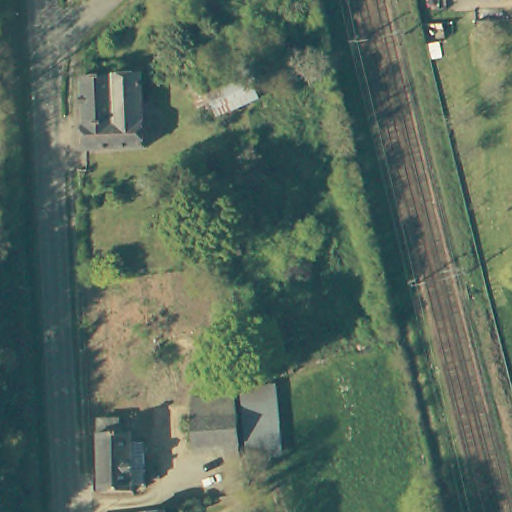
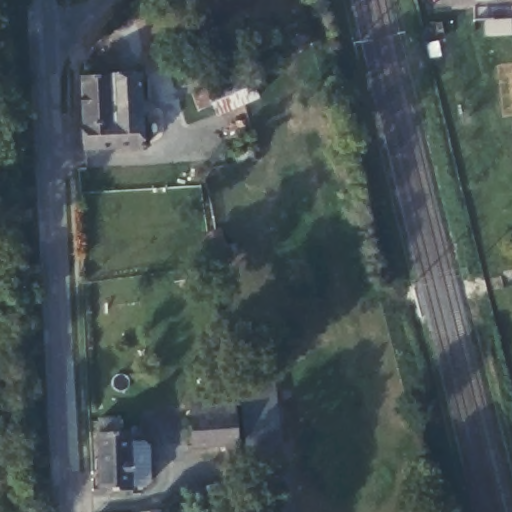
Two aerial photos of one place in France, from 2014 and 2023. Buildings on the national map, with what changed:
unchanged [(169,73),(163,59),(179,53),(185,67),(169,73)]
unchanged [(202,91),(265,62),(278,89),(215,118),(202,91)]
unchanged [(145,70),(146,113),(116,114),(116,122),(84,123),(82,73),(145,70)]
unchanged [(146,147),(85,147),(84,123),(116,122),(116,114),(146,113),(146,122),(146,147)]
unchanged [(236,143),(256,137),(262,157),(241,162),(236,143)]
unchanged [(229,319),(222,277),(249,273),(255,315),(229,319)]
unchanged [(249,390),(275,388),(282,455),(257,458),(249,390)]
unchanged [(246,447),(247,460),(235,460),(234,448),(205,450),(202,418),(201,399),(244,396),(245,415),(248,447),(246,447)]
unchanged [(100,492),(98,419),(120,417),(120,434),(131,434),(133,492),(100,492)]
unchanged [(165,512),(123,512),(165,509),(165,512)]

